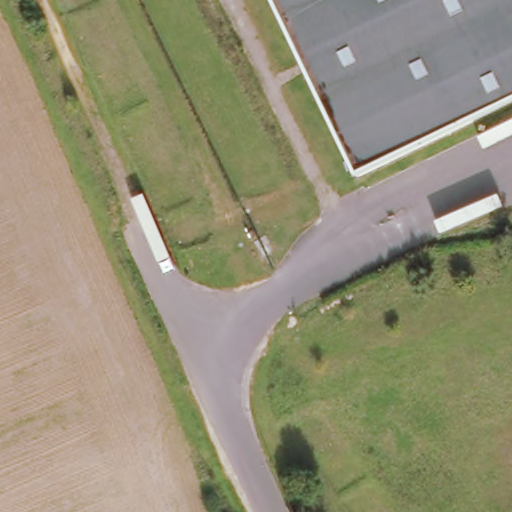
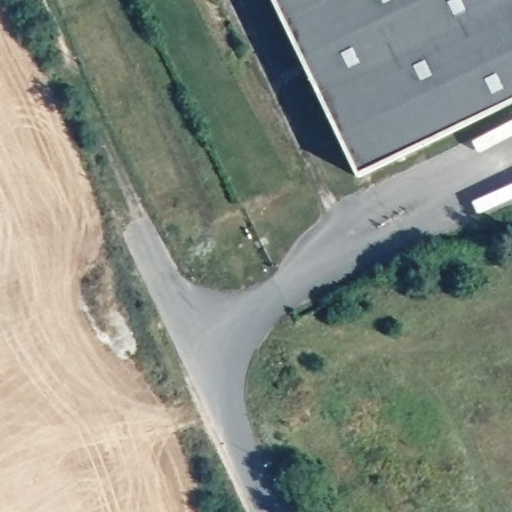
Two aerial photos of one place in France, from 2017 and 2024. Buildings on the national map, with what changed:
unchanged [(512,0),(512,101),(358,173),(275,0),(512,0)]

